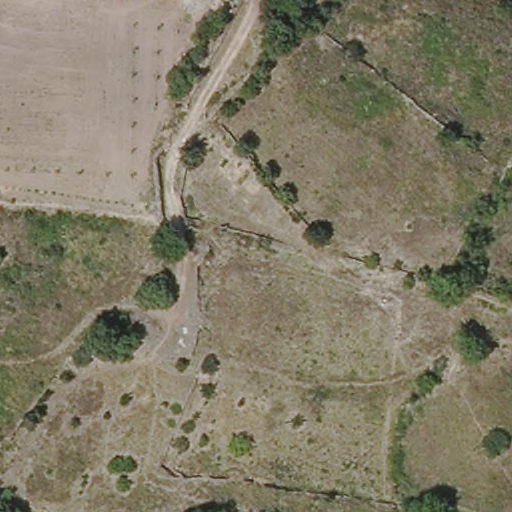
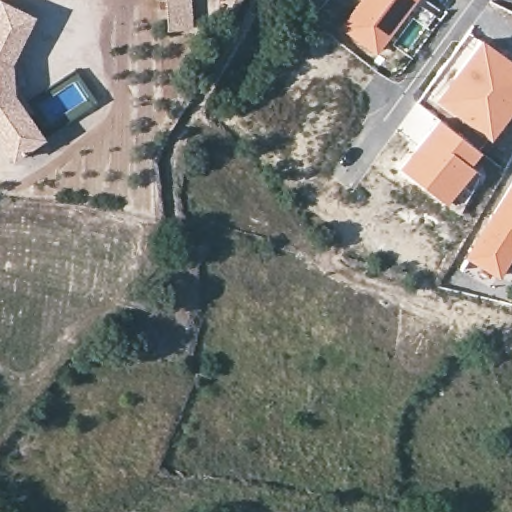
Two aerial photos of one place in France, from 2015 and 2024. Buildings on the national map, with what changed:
new [(10,56),(17,55),(20,84),(34,105),(28,109),(43,131),(12,152),(0,134),(0,0),(14,0),(33,9),(10,56)]
new [(159,0),(184,0),(182,33),(157,31),(159,0)]
new [(376,54),(340,28),(360,0),(415,0),(376,54)]
new [(480,38),(512,62),(512,111),(491,140),(437,100),(480,38)]
new [(438,123),(476,152),(467,164),(472,167),(443,204),(402,170),(438,123)]
new [(511,283),(468,257),(512,180),(512,281),(511,283)]

